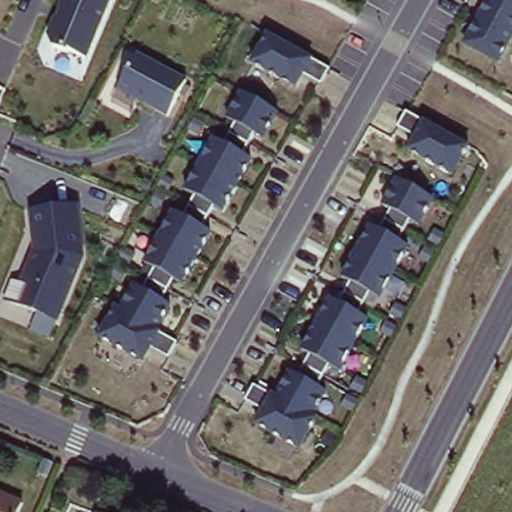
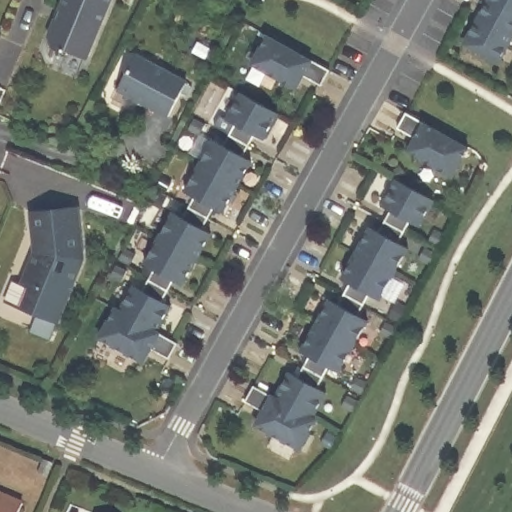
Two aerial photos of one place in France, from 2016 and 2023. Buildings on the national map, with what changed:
unchanged [(62,0),(109,0),(86,56),(63,57),(48,31),(62,0)]
unchanged [(488,0),(512,0),(512,42),(500,64),(466,40),(488,0)]
unchanged [(265,33),(330,71),(321,82),(306,75),(298,90),(249,62),(265,33)]
unchanged [(142,55),(186,82),(166,117),(120,88),(142,55)]
unchanged [(115,306),(120,309),(132,287),(143,292),(152,273),(144,268),(172,214),(182,220),(192,199),(183,193),(212,141),(223,147),(234,126),(225,120),(237,95),(279,115),(267,139),(255,135),(245,157),(252,162),(226,215),(213,211),(204,229),(212,234),(184,287),(171,283),(162,300),(170,305),(159,332),(175,342),(169,357),(152,348),(144,363),(97,340),(115,306)]
unchanged [(405,112),(423,124),(472,146),(455,177),(409,152),(416,135),(397,128),(405,112)]
unchanged [(253,384),(274,392),(286,371),(300,378),(310,356),(303,351),(327,300),(340,305),(350,285),(342,280),(368,227),(376,231),(391,207),(383,202),(397,180),(435,201),(424,225),(411,221),(400,242),(410,250),(382,303),(369,297),(358,318),(368,325),(341,377),(327,370),(317,388),(325,392),(310,419),(316,422),(301,450),(254,428),(263,410),(247,400),(253,384)]
unchanged [(75,206),(89,252),(61,326),(6,302),(11,286),(16,288),(34,256),(29,215),(75,206)]
unchanged [(21,512),(0,512),(0,494),(24,505),(21,512)]
unchanged [(100,512),(95,512),(96,510),(100,512)]

